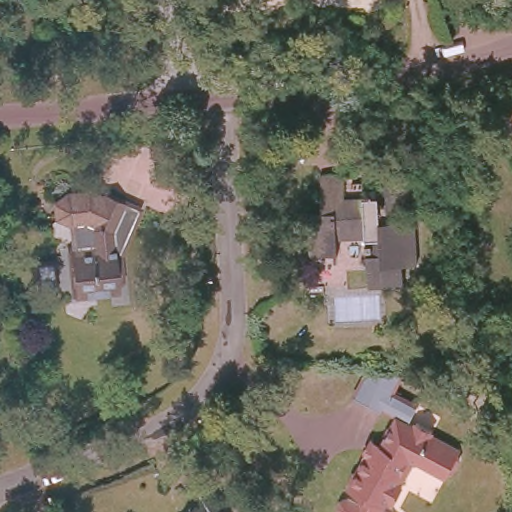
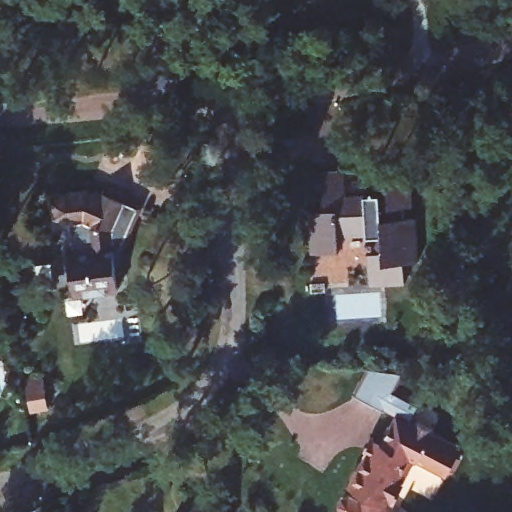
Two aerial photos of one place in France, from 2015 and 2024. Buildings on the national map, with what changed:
unchanged [(306,213),(322,211),(314,174),(350,166),(352,174),(373,169),(379,191),(387,190),(383,167),(405,162),(411,193),(402,195),(405,205),(416,203),(425,244),(409,247),(414,270),(377,277),(367,227),(339,232),(342,252),(314,257),(306,213)]
unchanged [(75,185),(92,183),(99,186),(109,192),(112,188),(131,196),(114,232),(119,287),(105,288),(82,290),(70,291),(69,280),(68,267),(67,257),(66,242),(95,240),(95,234),(93,234),(92,233),(91,232),(90,232),(89,231),(88,230),(87,229),(86,227),(85,225),(85,224),(84,222),(84,220),(84,219),(85,217),(85,216),(67,214),(64,212),(60,210),(58,205),(59,193),(62,192),(75,185)]
unchanged [(402,377),(394,392),(417,405),(408,422),(416,427),(418,423),(430,430),(430,433),(458,450),(443,476),(403,455),(398,463),(409,478),(396,501),(393,499),(389,508),(393,512),(351,512),(345,508),(344,502),(347,497),(351,495),(363,502),(366,495),(353,487),(371,455),(377,456),(398,417),(385,408),(382,413),(355,397),(366,372),(377,374),(402,377)]
unchanged [(224,512),(186,512),(211,493),(224,512)]

